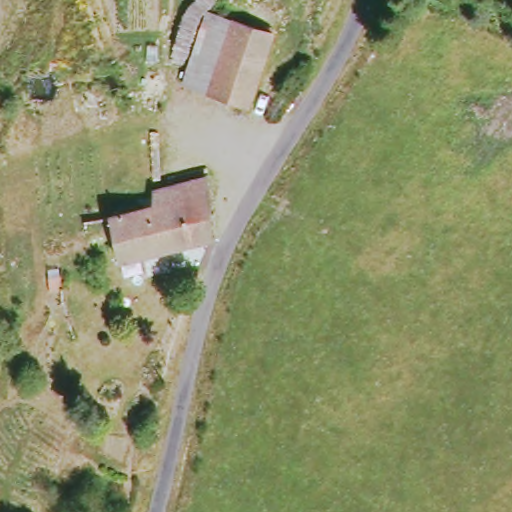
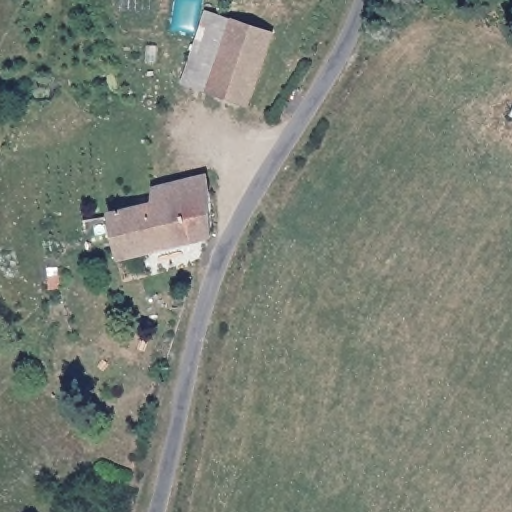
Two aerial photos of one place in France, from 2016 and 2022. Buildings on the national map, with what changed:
unchanged [(199,88),(179,79),(204,14),(225,23),(199,88)]
unchanged [(265,39),(242,105),(199,88),(225,23),(265,39)]
unchanged [(107,217),(149,206),(149,191),(169,186),(178,184),(204,180),(204,194),(207,237),(116,261),(107,217)]

